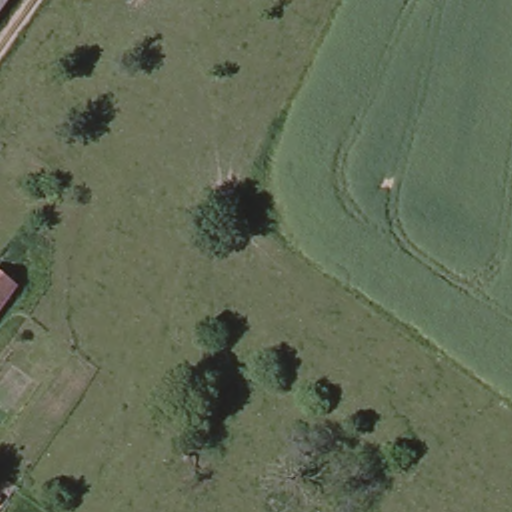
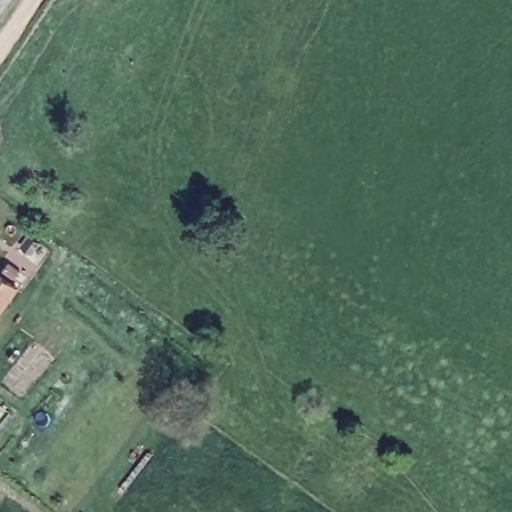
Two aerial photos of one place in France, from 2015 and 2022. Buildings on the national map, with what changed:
unchanged [(0,0),(9,0),(0,13),(0,0)]
unchanged [(0,309),(0,279),(15,289),(0,309)]

